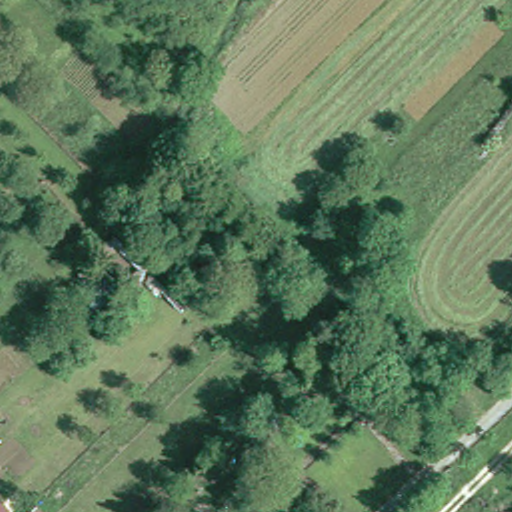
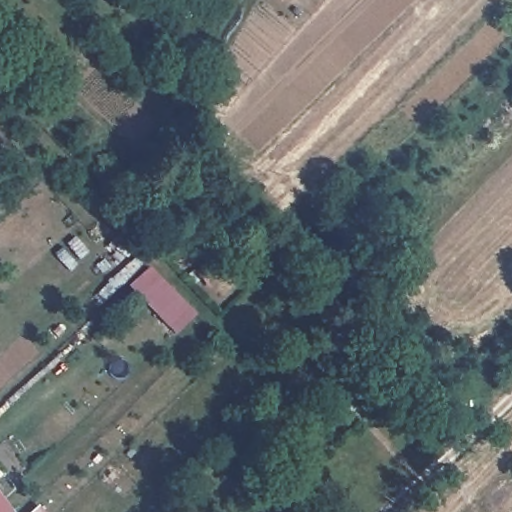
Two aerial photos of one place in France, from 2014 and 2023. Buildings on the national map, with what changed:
new [(148,266),(195,313),(174,333),(127,285),(148,266)]
unchanged [(2,497),(12,510),(9,512),(0,512),(0,494),(2,497)]

